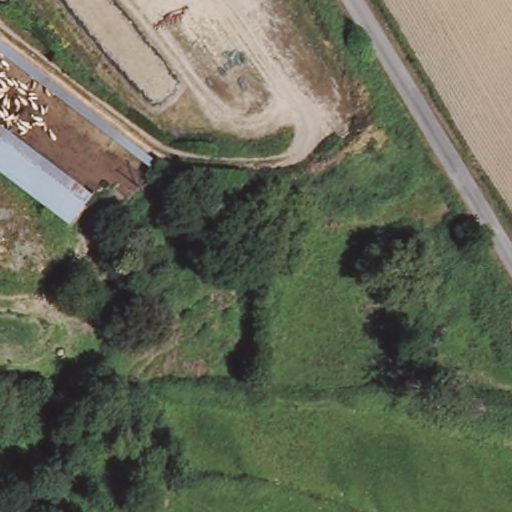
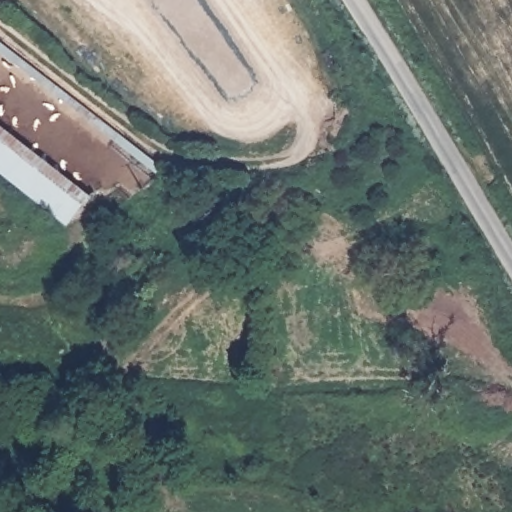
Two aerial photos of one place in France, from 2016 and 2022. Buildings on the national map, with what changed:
unchanged [(100,195),(71,227),(0,172),(0,119),(100,195)]

